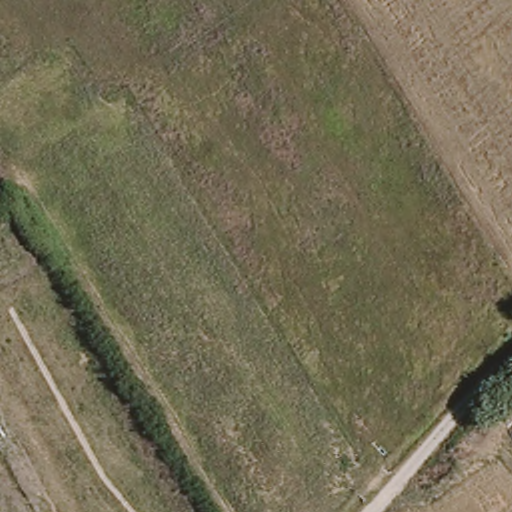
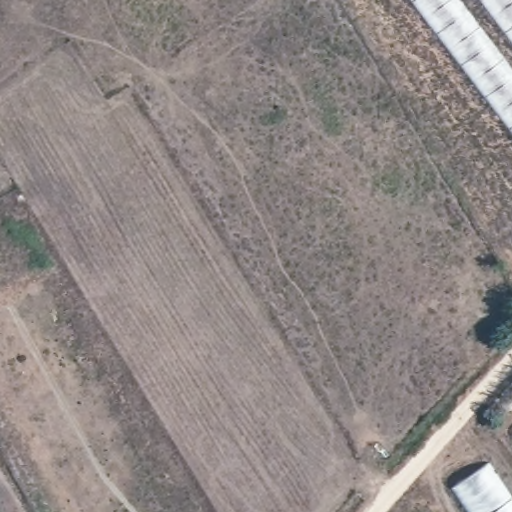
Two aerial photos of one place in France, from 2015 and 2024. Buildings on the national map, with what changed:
new [(412,0),(512,0),(512,129),(412,0)]
unchanged [(507,429),(512,427),(512,439),(507,429)]
unchanged [(512,451),(512,512),(467,512),(450,486),(512,451)]

